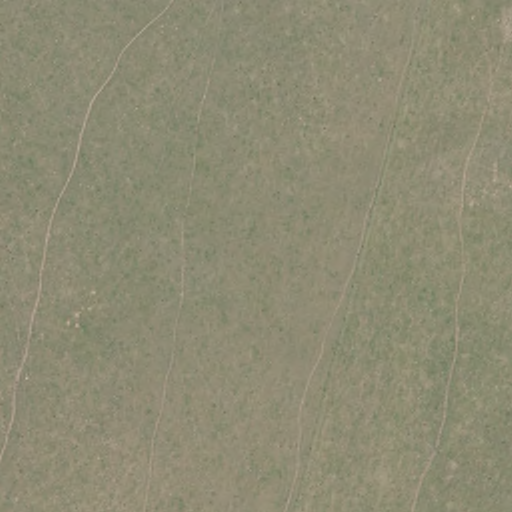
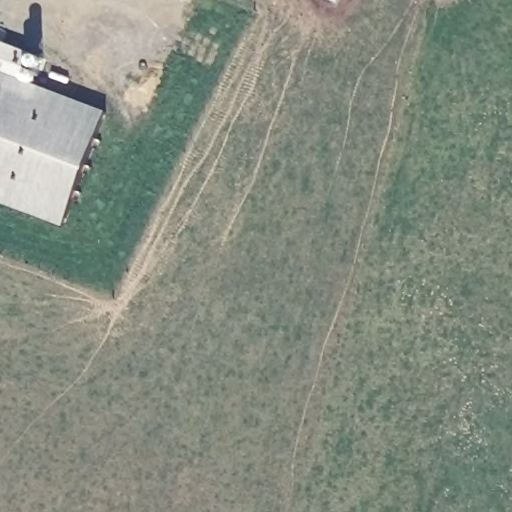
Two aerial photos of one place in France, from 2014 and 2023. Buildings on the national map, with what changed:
new [(0,204),(0,42),(33,54),(24,81),(106,112),(63,227),(0,204)]

